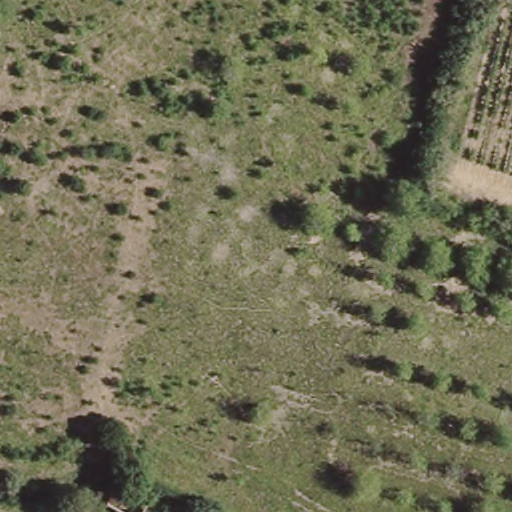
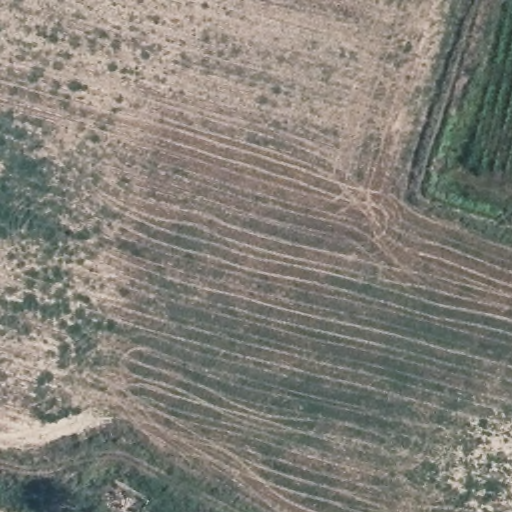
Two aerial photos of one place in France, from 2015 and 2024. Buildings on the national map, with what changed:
unchanged [(117,512),(105,506),(114,485),(148,501),(142,512),(117,512)]

